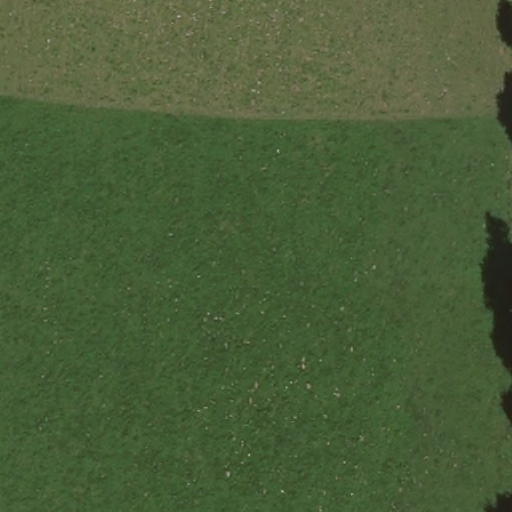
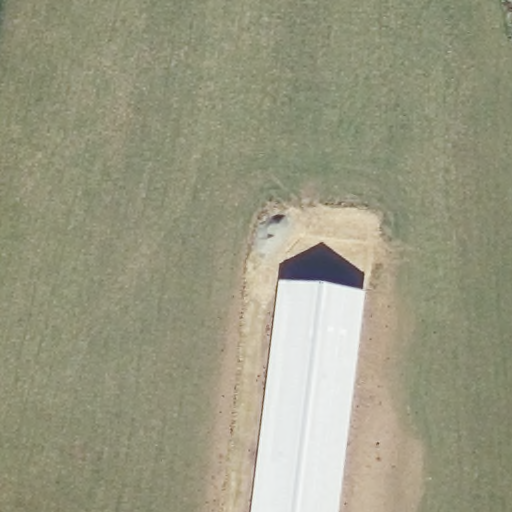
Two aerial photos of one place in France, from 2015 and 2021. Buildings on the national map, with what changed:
new [(356,287),(331,512),(257,512),(283,280),(356,287)]

